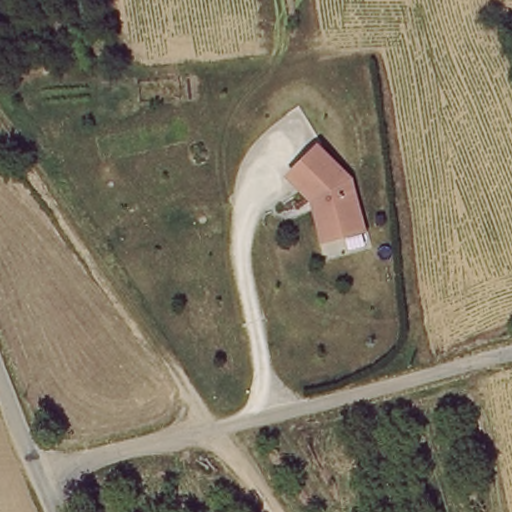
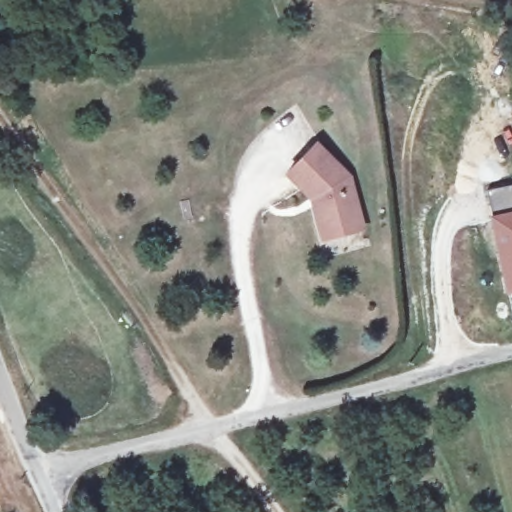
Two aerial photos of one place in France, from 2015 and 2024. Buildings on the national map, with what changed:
unchanged [(352,176),(365,226),(318,240),(308,206),(281,176),(314,144),(352,176)]
new [(489,217),(492,216),(487,191),(512,186),(512,293),(505,295),(489,217)]

